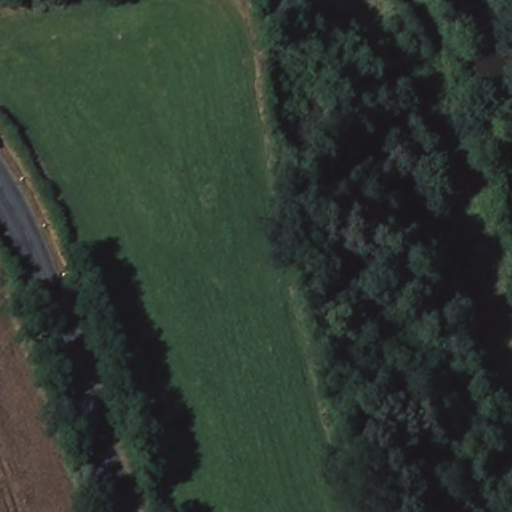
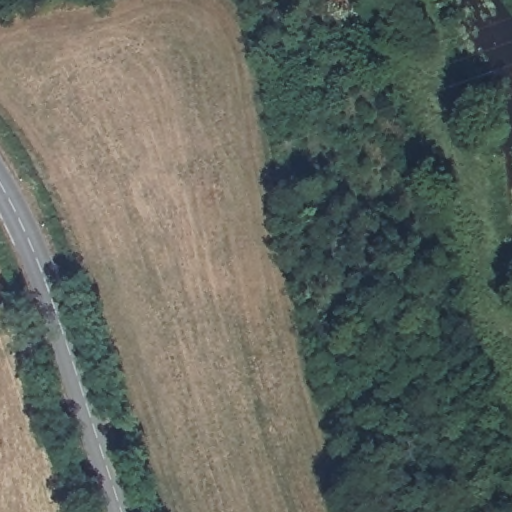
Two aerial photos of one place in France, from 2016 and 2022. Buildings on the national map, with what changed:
unchanged [(343,14),(333,10),(327,0),(345,0),(350,8),(343,14)]

